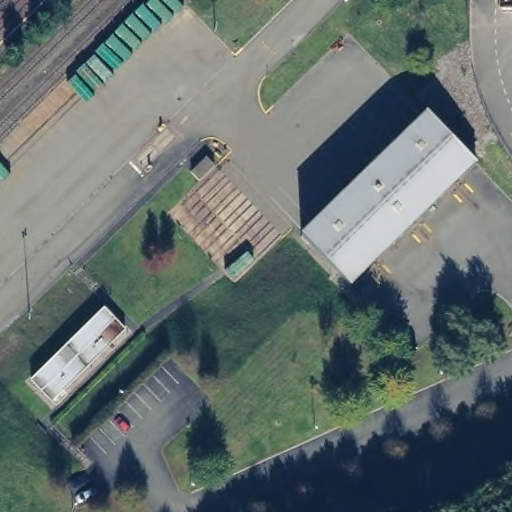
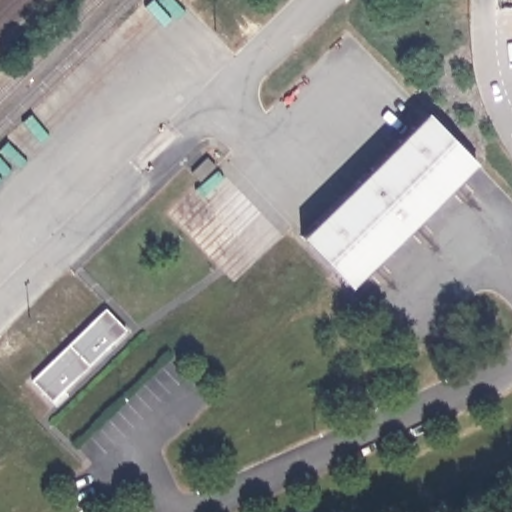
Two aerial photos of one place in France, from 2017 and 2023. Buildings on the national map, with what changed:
unchanged [(426,114),(472,167),(350,288),(301,237),(426,114)]
unchanged [(230,178),(215,192),(206,184),(221,169),(230,178)]
unchanged [(32,377),(105,305),(126,327),(53,398),(32,377)]

